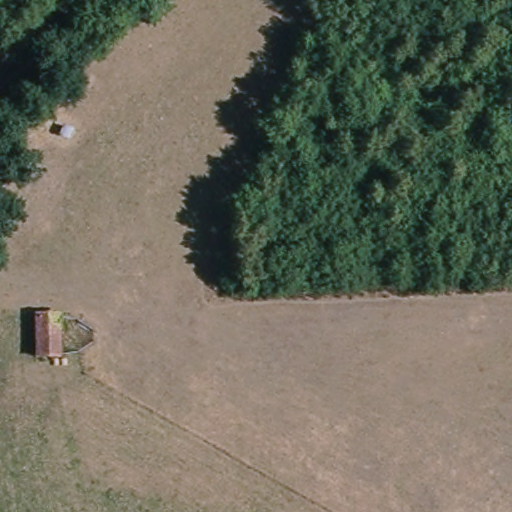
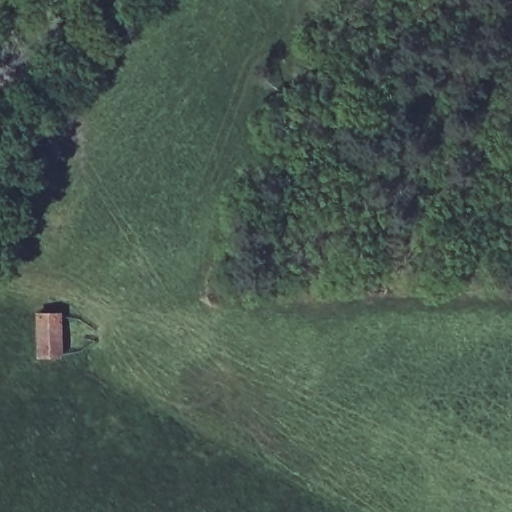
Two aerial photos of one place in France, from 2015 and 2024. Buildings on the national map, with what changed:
unchanged [(62,352),(41,355),(38,315),(58,312),(62,352)]

